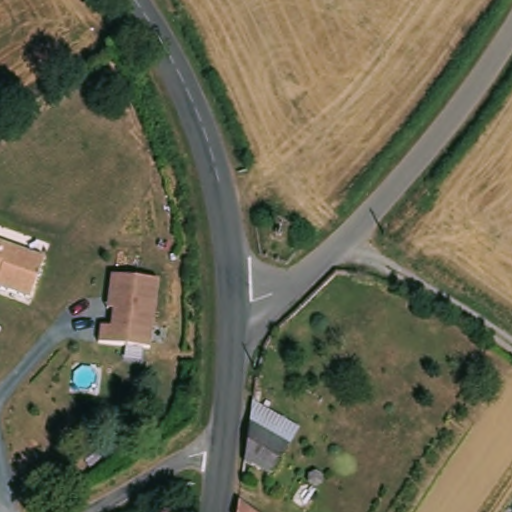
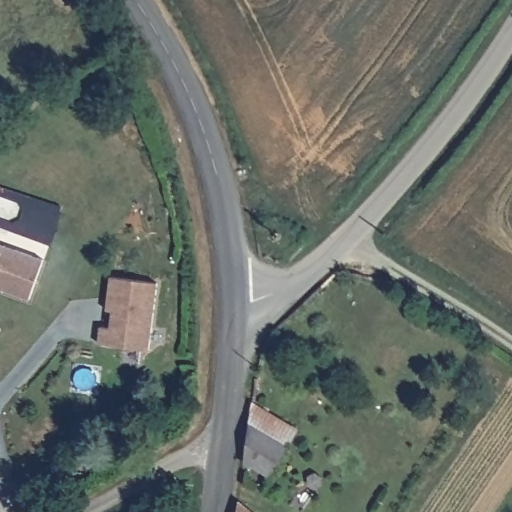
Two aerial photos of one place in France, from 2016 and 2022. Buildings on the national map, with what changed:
unchanged [(27,300),(13,294),(0,290),(0,245),(41,260),(27,300)]
unchanged [(151,284),(146,349),(96,345),(97,328),(107,329),(108,314),(102,313),(103,303),(105,280),(151,284)]
unchanged [(255,401),(285,418),(303,428),(280,475),(264,467),(248,457),(255,401)]

